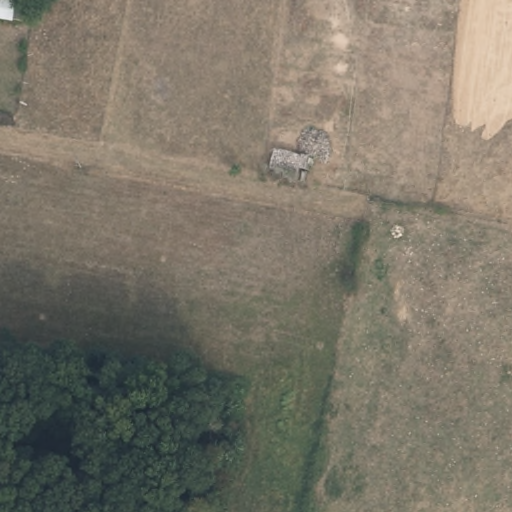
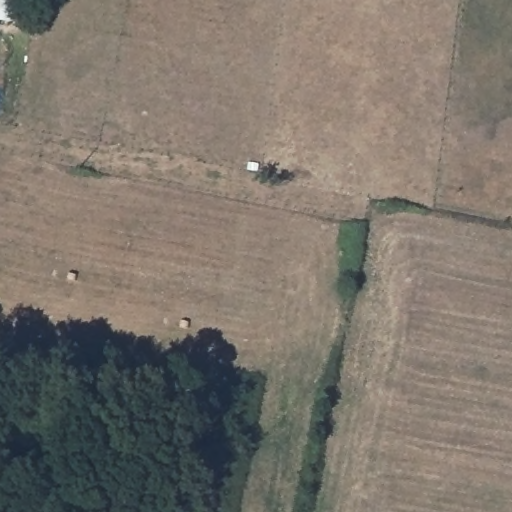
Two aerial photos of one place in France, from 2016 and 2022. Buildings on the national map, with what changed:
unchanged [(27,24),(0,20),(0,0),(31,0),(27,24)]

